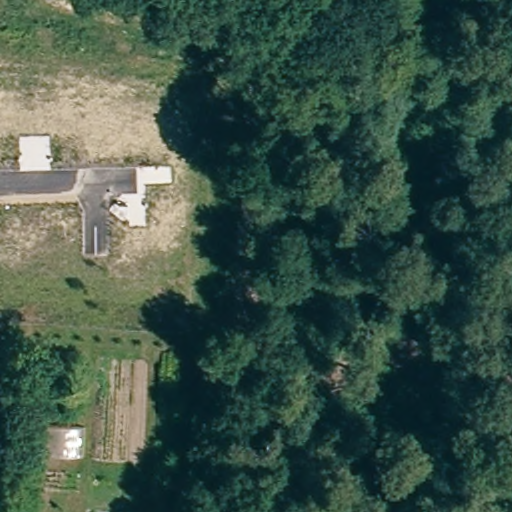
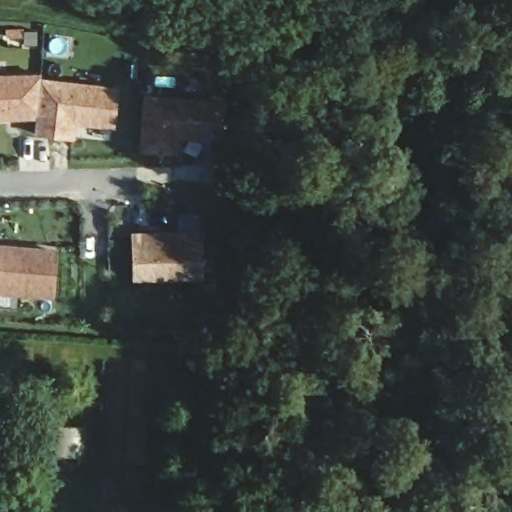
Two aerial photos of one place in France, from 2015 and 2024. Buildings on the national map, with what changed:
new [(4,65),(5,80),(40,80),(39,84),(36,121),(5,122),(0,122),(0,65),(4,65)]
new [(71,140),(34,136),(36,121),(39,84),(111,91),(111,129),(80,125),(72,125),(71,140)]
new [(178,155),(146,153),(149,100),(226,105),(224,141),(188,139),(179,139),(178,155)]
new [(202,236),(204,279),(138,282),(137,239),(202,236)]
new [(52,258),(49,298),(0,295),(0,255),(52,258)]

